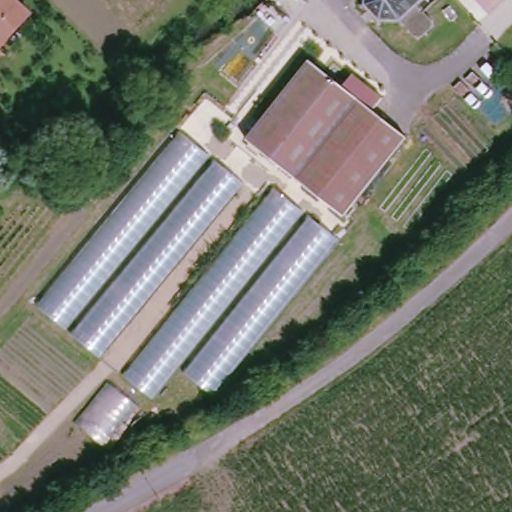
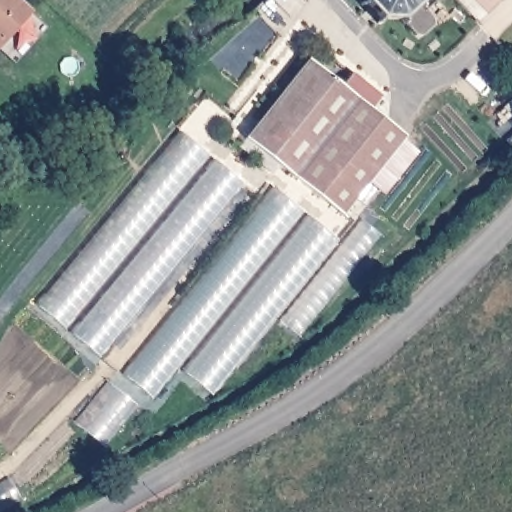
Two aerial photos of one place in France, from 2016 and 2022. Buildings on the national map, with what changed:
unchanged [(3,43),(0,41),(0,0),(18,0),(32,12),(3,43)]
unchanged [(362,0),(420,0),(393,20),(380,20),(374,28),(372,26),(377,19),(363,6),(356,8),(355,5),(362,2),(362,0)]
unchanged [(420,0),(440,0),(422,15),(428,20),(428,28),(418,38),(412,38),(396,23),(393,20),(420,0)]
unchanged [(308,56),(330,73),(322,83),(321,99),(272,157),(245,134),(308,56)]
unchanged [(512,63),(512,66),(510,64),(512,63)]
unchanged [(282,164),(272,157),(321,99),(322,83),(330,73),(343,83),(354,70),(357,72),(282,164)]
unchanged [(385,94),(374,107),(407,134),(342,214),(282,164),(357,72),(385,94)]
unchanged [(95,357),(31,305),(177,131),(238,181),(95,357)]
unchanged [(208,392),(174,366),(149,395),(120,371),(266,188),(334,235),(208,392)]
unchanged [(136,404),(102,445),(74,423),(107,383),(136,404)]

